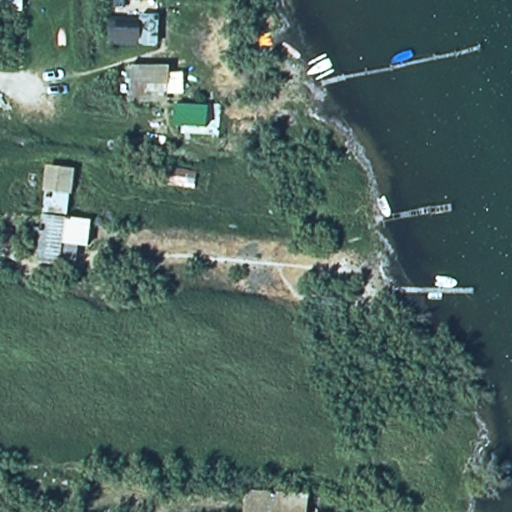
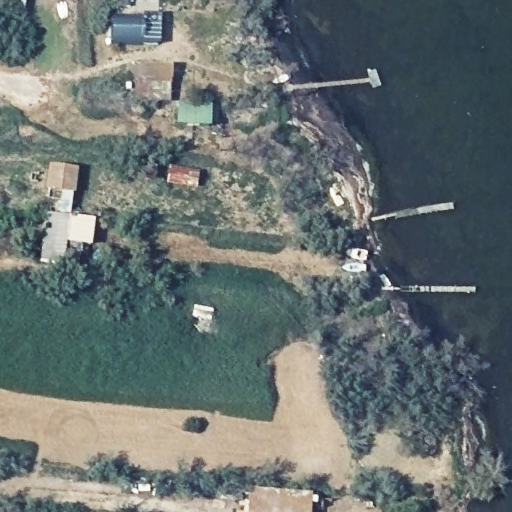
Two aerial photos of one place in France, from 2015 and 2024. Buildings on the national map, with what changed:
unchanged [(171,61),(169,105),(129,105),(133,60),(171,61)]
unchanged [(78,161),(75,214),(95,218),(91,248),(66,247),(64,262),(35,260),(46,160),(78,161)]
unchanged [(203,166),(201,191),(166,186),(168,161),(203,166)]
unchanged [(316,491),(314,512),(241,512),(244,485),(316,491)]

